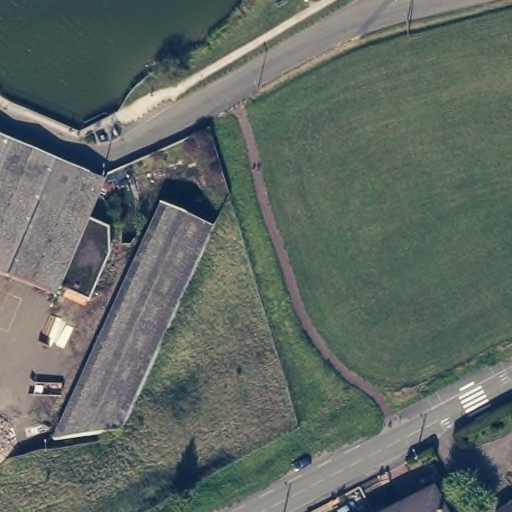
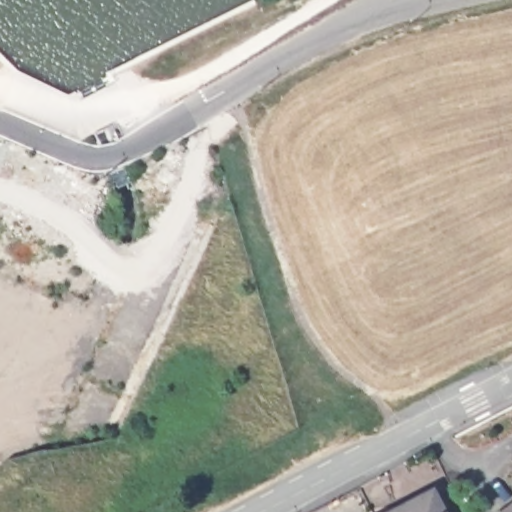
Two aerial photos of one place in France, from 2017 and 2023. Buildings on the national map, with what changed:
demolished [(108,223),(109,249),(88,296),(59,284),(55,292),(0,269),(0,131),(104,175),(88,213),(108,223)]
demolished [(212,220),(118,426),(54,435),(163,197),(212,220)]
unchanged [(449,512),(391,512),(436,488),(449,512)]
unchanged [(503,512),(512,506),(512,512),(503,512)]

